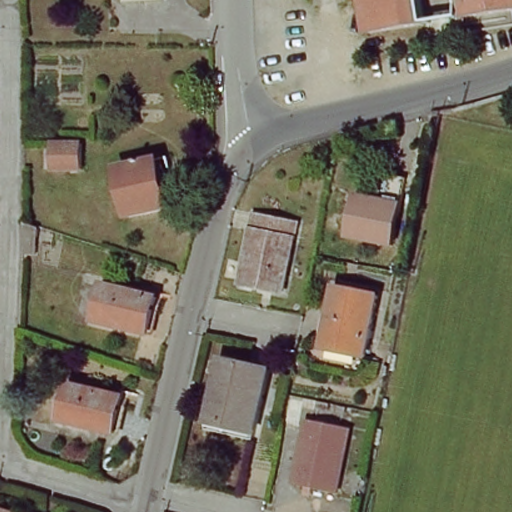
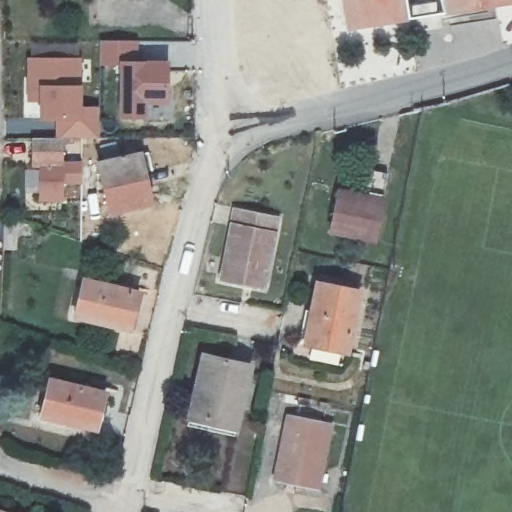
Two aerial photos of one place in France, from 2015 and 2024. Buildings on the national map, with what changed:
unchanged [(348,31),(343,0),(512,0),(512,4),(348,31)]
new [(170,104),(147,102),(148,118),(120,117),(120,66),(101,66),(101,42),(138,41),(136,61),(170,61),(170,104)]
new [(66,140),(65,161),(83,161),(83,183),(64,182),(64,202),(40,202),(40,167),(33,167),(34,139),(56,139),(53,121),(39,121),(40,102),(27,102),(30,57),(83,57),(83,85),(84,107),(100,108),(99,139),(66,140)]
demolished [(35,165),(39,142),(67,144),(66,157),(64,167),(35,165)]
unchanged [(141,159),(150,207),(112,216),(104,167),(141,159)]
unchanged [(369,242),(327,234),(337,193),(378,204),(369,242)]
unchanged [(278,235),(265,286),(222,275),(235,225),(278,235)]
unchanged [(137,298),(129,334),(75,322),(84,286),(137,298)]
unchanged [(356,297),(346,355),(307,345),(319,287),(356,297)]
unchanged [(230,432),(186,422),(195,387),(203,388),(209,362),(247,371),(230,432)]
unchanged [(102,397),(94,432),(41,418),(50,383),(102,397)]
unchanged [(266,413),(270,393),(285,398),(281,416),(266,413)]
unchanged [(276,480),(291,416),(332,425),(317,490),(276,480)]

